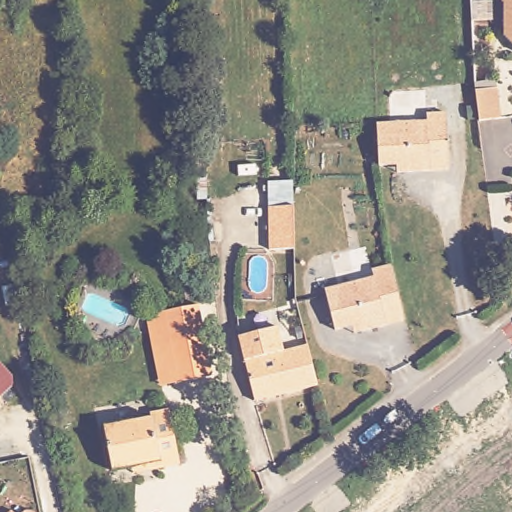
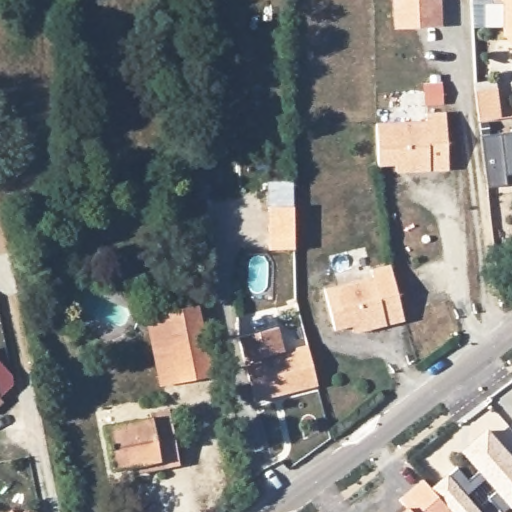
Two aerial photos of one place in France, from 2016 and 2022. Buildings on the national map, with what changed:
new [(394,30),(393,0),(441,0),(443,27),(394,30)]
unchanged [(502,9),(493,0),(512,0),(512,52),(502,41),(502,9)]
unchanged [(491,89),(491,121),(469,121),(469,89),(491,89)]
unchanged [(392,169),(375,169),(374,124),(426,124),(426,116),(445,117),(446,177),(404,177),(392,177),(392,169)]
unchanged [(273,238),(272,194),(297,194),(297,237),(273,238)]
unchanged [(352,328),(335,332),(326,290),(376,279),(374,272),(394,267),(406,324),(365,333),(353,335),(352,328)]
unchanged [(201,304),(213,379),(179,385),(167,310),(201,304)]
unchanged [(158,389),(146,314),(167,310),(179,385),(158,389)]
unchanged [(245,363),(239,335),(279,327),(284,353),(245,363)]
unchanged [(284,353),(307,348),(317,392),(255,406),(245,363),(284,353)]
unchanged [(5,407),(0,411),(0,399),(5,407)]
unchanged [(150,419),(149,414),(169,411),(179,466),(161,470),(160,467),(142,470),(141,466),(111,472),(102,429),(150,419)]
new [(480,470),(463,452),(471,445),(487,431),(512,460),(512,504),(503,512),(500,512),(488,499),(498,490),(486,477),(464,497),(478,512),(451,512),(432,490),(457,468),(468,481),(480,470)]
new [(406,508),(398,501),(423,479),(432,490),(451,512),(402,512),(406,508)]

